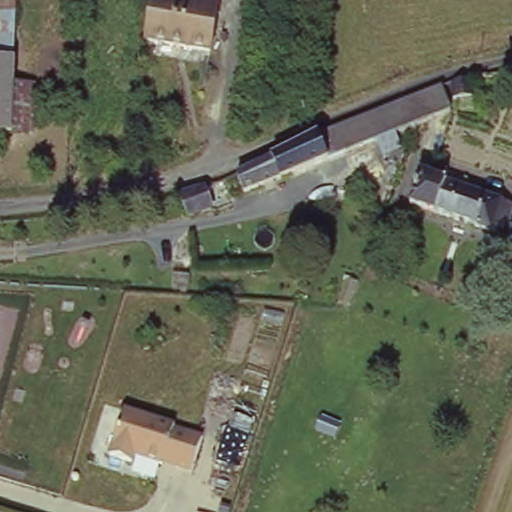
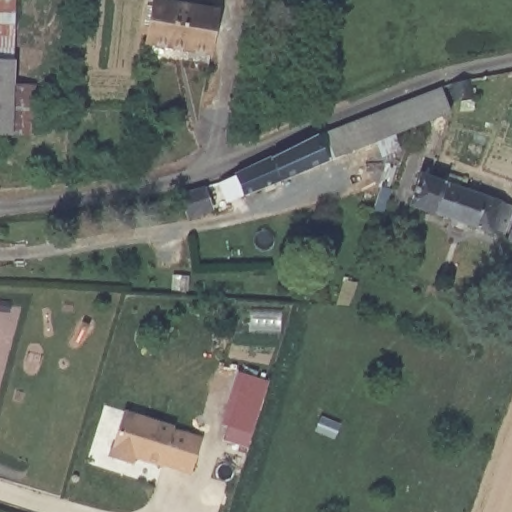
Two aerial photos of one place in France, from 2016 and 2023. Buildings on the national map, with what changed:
unchanged [(135,57),(154,0),(176,0),(220,15),(197,79),(135,57)]
unchanged [(28,139),(7,137),(0,137),(0,60),(15,62),(12,89),(32,91),(28,139)]
unchanged [(455,86),(453,107),(440,107),(437,90),(455,86)]
unchanged [(282,152),(323,134),(354,119),(375,112),(398,102),(423,94),(429,92),(434,112),(435,116),(391,136),(230,210),(215,180),(282,152)]
unchanged [(450,177),(464,182),(461,190),(512,207),(512,209),(504,236),(417,207),(426,181),(430,182),(447,186),(450,177)]
unchanged [(185,222),(182,214),(177,195),(193,192),(203,190),(208,208),(210,216),(185,222)]
unchanged [(512,240),(512,242),(511,242),(512,240)]
new [(224,440),(228,427),(221,425),(239,371),(272,382),(250,448),(224,440)]
unchanged [(206,438),(191,475),(136,459),(131,467),(110,460),(127,412),(206,438)]

